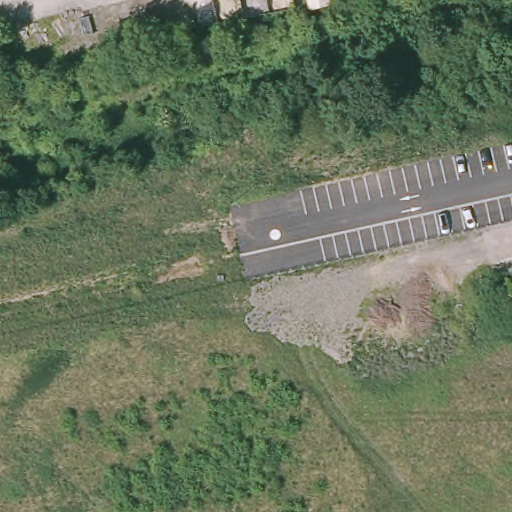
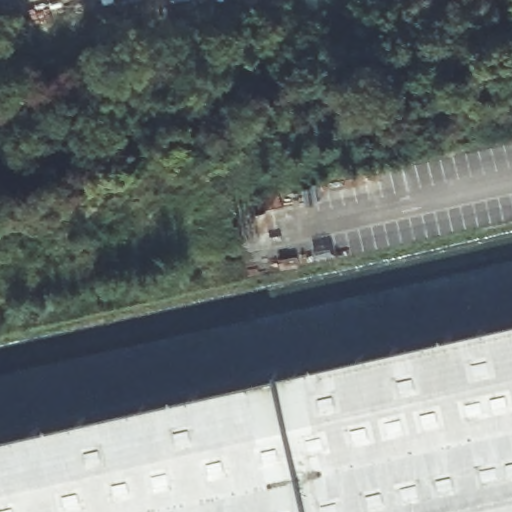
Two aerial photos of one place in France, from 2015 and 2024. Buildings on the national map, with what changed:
unchanged [(305,0),(330,0),(331,7),(307,14),(305,0)]
new [(0,426),(512,315),(512,512),(0,512),(0,426)]

